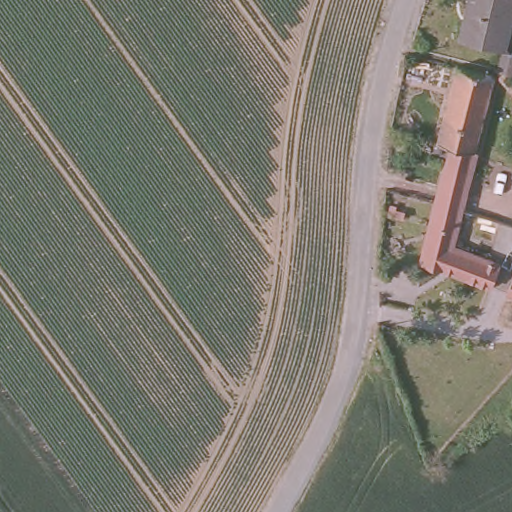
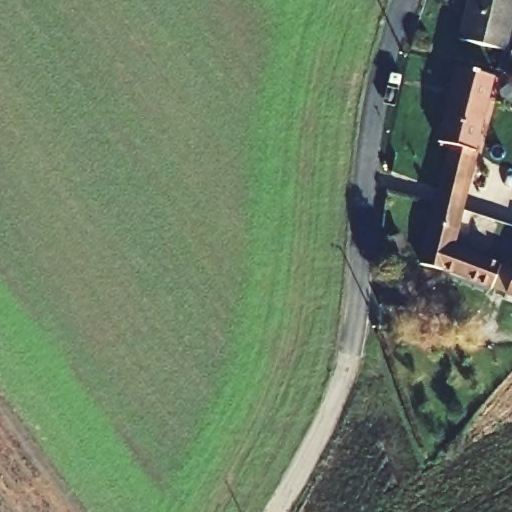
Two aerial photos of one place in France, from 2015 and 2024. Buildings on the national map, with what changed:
unchanged [(512,0),(512,15),(502,51),(461,41),(469,0),(512,0)]
unchanged [(502,71),(497,70),(502,51),(512,54),(512,74),(502,71)]
unchanged [(462,279),(442,273),(422,267),(450,148),(442,144),(460,68),(495,77),(450,250),(512,274),(512,300),(489,292),(462,279)]

